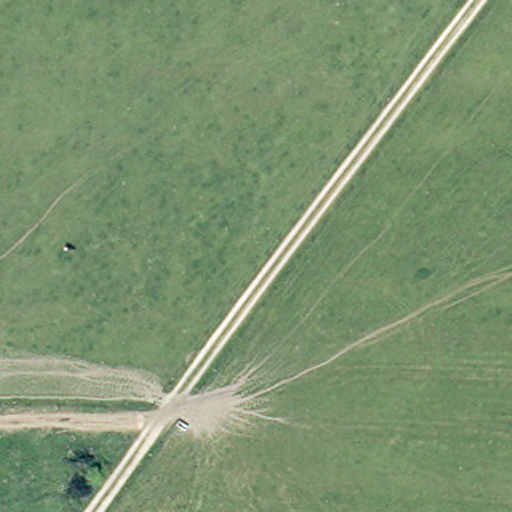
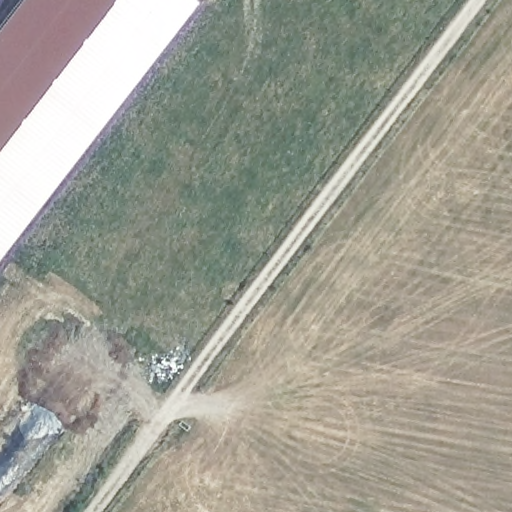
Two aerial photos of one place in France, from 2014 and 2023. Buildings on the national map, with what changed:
new [(191,0),(194,2),(0,254),(0,22),(17,0),(191,0)]

